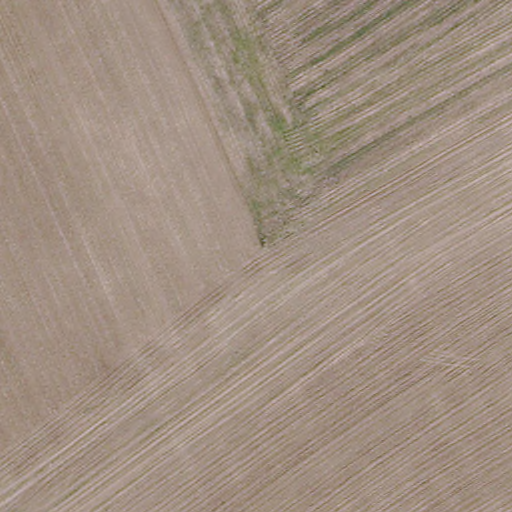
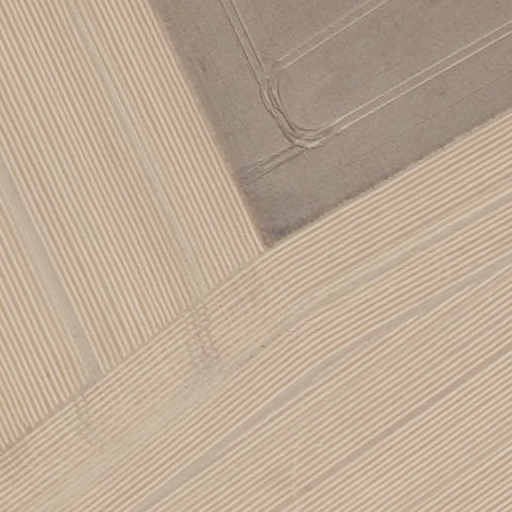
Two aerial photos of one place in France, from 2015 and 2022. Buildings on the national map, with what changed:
[]

